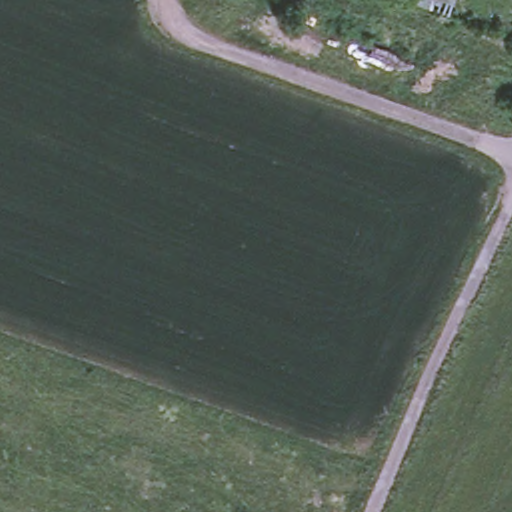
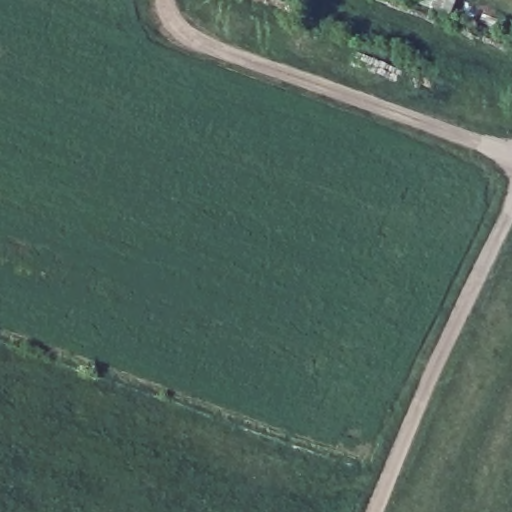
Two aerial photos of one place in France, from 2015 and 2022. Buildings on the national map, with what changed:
unchanged [(419,0),(456,0),(451,16),(417,5),(419,0)]

